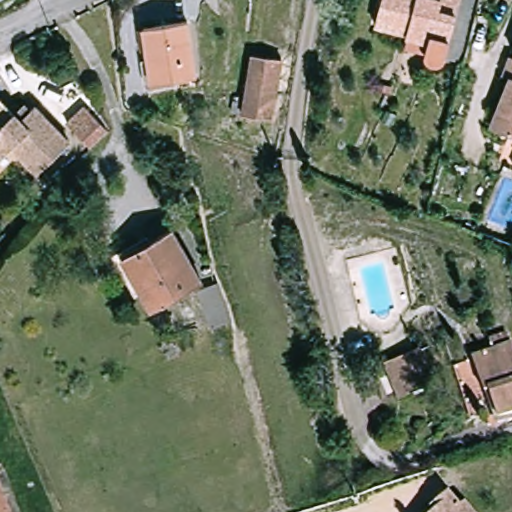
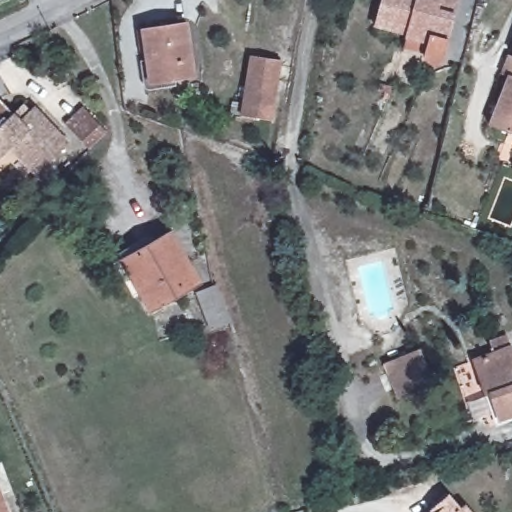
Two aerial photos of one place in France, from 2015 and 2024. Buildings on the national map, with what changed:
unchanged [(395,33),(365,25),(372,0),(461,0),(449,61),(433,58),(430,61),(425,63),(420,62),(417,58),(416,52),(392,46),(394,37),(395,33)]
unchanged [(188,21),(196,76),(149,83),(140,30),(188,21)]
unchanged [(276,123),(243,117),(248,89),(253,59),(268,61),(287,64),(276,123)]
unchanged [(509,81),(500,76),(508,60),(512,62),(512,138),(511,138),(490,129),(509,81)]
unchanged [(4,98),(18,112),(26,104),(33,111),(38,106),(74,143),(42,173),(16,146),(0,161),(0,101),(4,98)]
unchanged [(65,121),(88,104),(107,135),(102,140),(89,152),(65,121)]
unchanged [(171,231),(202,284),(153,313),(121,261),(171,231)]
unchanged [(220,286),(234,325),(213,332),(201,293),(220,286)]
unchanged [(495,340),(512,336),(512,411),(500,414),(492,389),(487,391),(478,356),(497,351),(495,340)]
unchanged [(420,355),(432,391),(396,400),(385,365),(420,355)]
unchanged [(13,512),(0,512),(0,480),(13,512)]
unchanged [(454,495),(466,511),(471,507),(475,512),(431,512),(454,495)]

